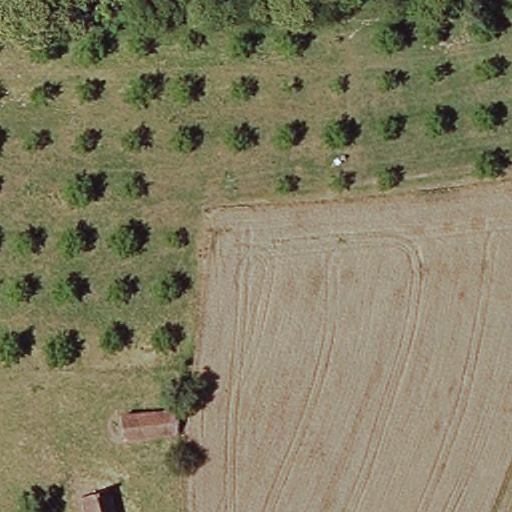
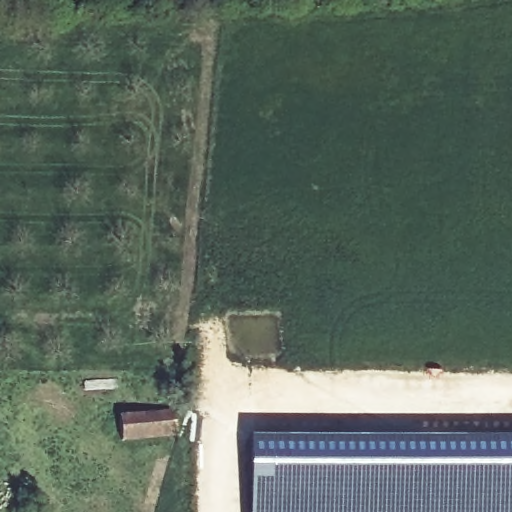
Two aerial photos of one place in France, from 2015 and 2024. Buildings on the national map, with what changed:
unchanged [(123,444),(120,421),(155,416),(176,414),(180,436),(158,439),(123,444)]
new [(246,437),(512,438),(512,512),(246,512),(246,437)]
demolished [(108,490),(116,512),(87,512),(82,497),(108,490)]

